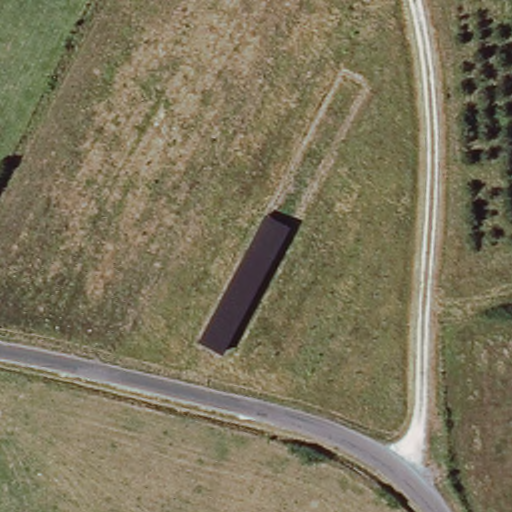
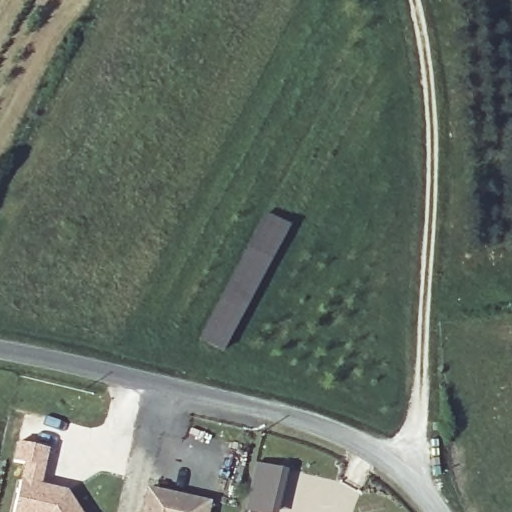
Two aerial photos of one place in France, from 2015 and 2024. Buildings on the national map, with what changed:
unchanged [(294,228),(224,353),(202,341),(268,212),(294,228)]
new [(48,450),(40,485),(65,491),(80,512),(12,512),(24,464),(12,462),(17,442),(48,450)]
new [(257,464),(283,470),(273,512),(260,512),(247,509),(257,464)]
new [(210,502),(208,512),(139,512),(145,488),(210,502)]

